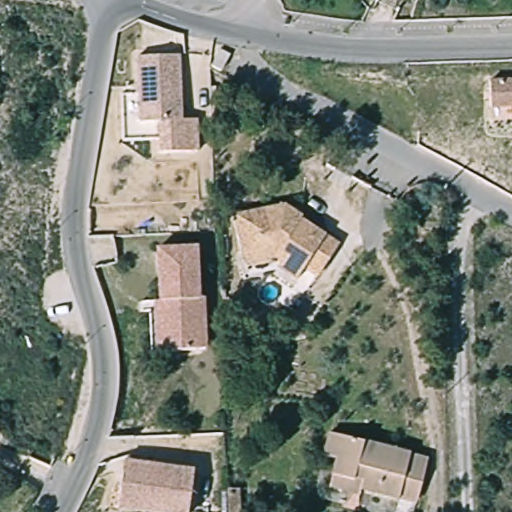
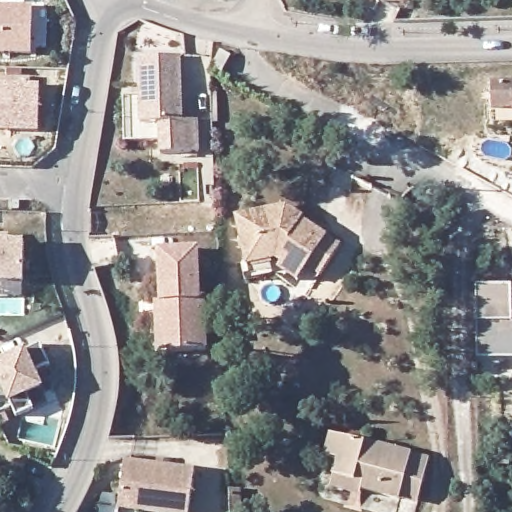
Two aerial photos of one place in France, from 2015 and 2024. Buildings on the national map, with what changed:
new [(32,6),(31,53),(0,53),(0,5),(32,6)]
unchanged [(199,150),(160,152),(159,121),(140,121),(137,55),(179,53),(182,118),(197,117),(199,150)]
unchanged [(217,58),(234,67),(229,77),(212,68),(217,58)]
unchanged [(494,79),(512,78),(512,105),(494,106),(494,79)]
new [(40,85),(38,132),(0,133),(0,84),(40,85)]
unchanged [(283,199),(300,210),(299,212),(312,222),(337,239),(316,268),(313,266),(303,260),(294,273),(281,265),(241,272),(238,257),(243,257),(234,208),(283,199)]
new [(8,236),(9,242),(24,243),(23,282),(0,282),(0,235),(8,236)]
unchanged [(155,302),(160,302),(158,250),(197,249),(199,300),(204,300),(206,351),(167,352),(157,352),(155,302)]
new [(510,322),(512,322),(512,357),(476,358),(472,286),(509,285),(510,322)]
new [(24,349),(40,344),(50,366),(34,370),(43,389),(26,397),(33,410),(15,418),(11,407),(0,412),(0,360),(24,349)]
unchanged [(428,462),(418,500),(401,495),(399,500),(362,490),(361,497),(331,488),(339,460),(324,456),(330,436),(428,462)]
unchanged [(121,496),(124,472),(126,462),(130,462),(196,471),(190,512),(145,512),(120,508),(121,496)]

